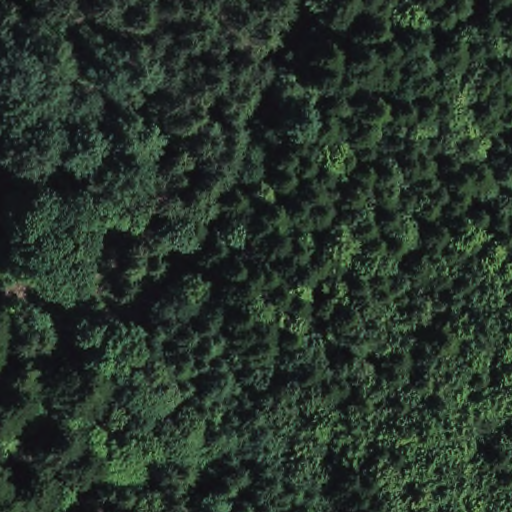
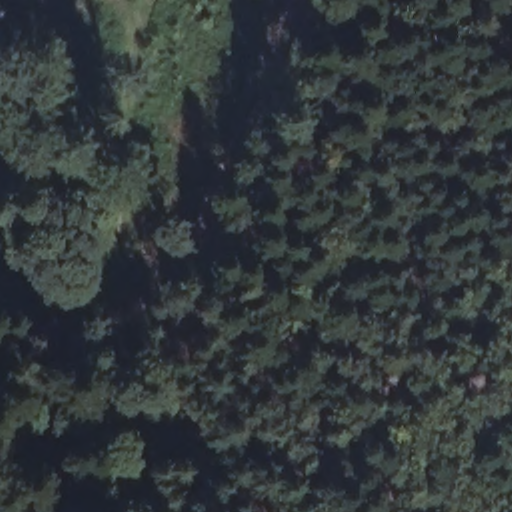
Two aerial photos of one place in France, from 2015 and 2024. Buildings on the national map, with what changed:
[]

